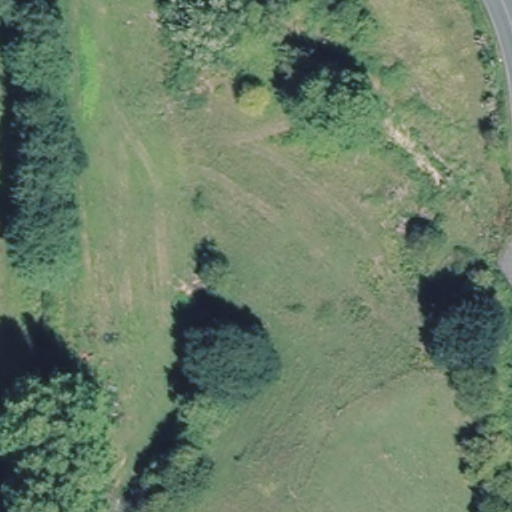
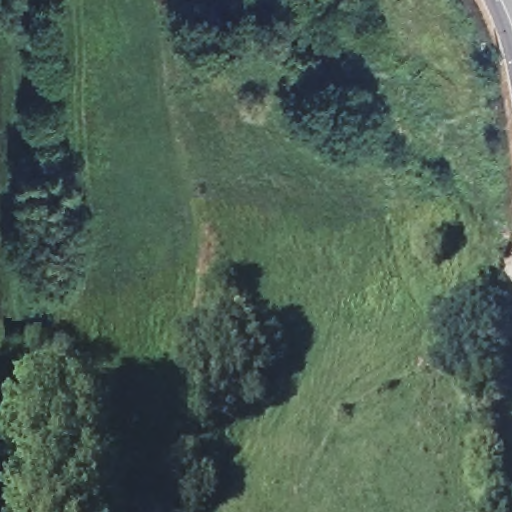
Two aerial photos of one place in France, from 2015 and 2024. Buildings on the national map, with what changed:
unchanged [(454,341),(468,341),(468,368),(453,367),(454,341)]

